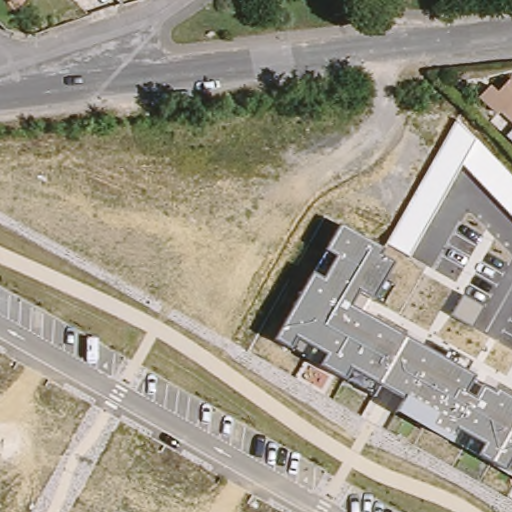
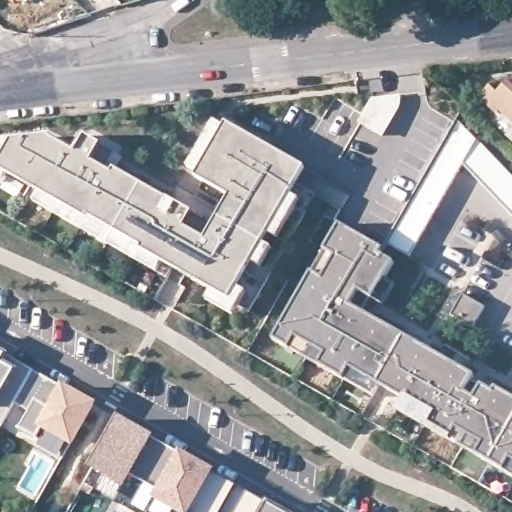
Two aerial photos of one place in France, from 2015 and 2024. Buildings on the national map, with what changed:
unchanged [(16,0),(10,6),(5,0),(16,0)]
unchanged [(504,120),(488,104),(499,93),(506,100),(512,95),(512,119),(508,115),(504,120)]
new [(375,100),(403,97),(403,107),(384,139),(360,125),(375,100)]
unchanged [(512,217),(462,166),(411,256),(387,242),(456,120),(512,177),(512,217)]
new [(49,134),(77,148),(85,135),(123,157),(115,170),(214,223),(230,196),(196,178),(198,173),(188,168),(214,121),(224,127),(227,124),(304,167),(290,195),(300,200),(277,238),(267,233),(262,244),(271,249),(260,268),(251,263),(238,288),(246,293),(234,316),(207,301),(212,292),(162,263),(157,273),(34,201),(40,192),(8,174),(3,182),(0,180),(0,139),(49,134)]
unchanged [(381,256),(394,263),(386,279),(394,285),(384,304),(372,297),(359,292),(351,306),(443,358),(449,348),(473,361),(468,371),(476,376),(466,393),(477,398),(483,387),(497,394),(500,391),(512,398),(512,477),(476,457),(483,444),(459,431),(452,443),(396,411),(403,398),(379,385),(374,396),(275,340),(340,224),(383,249),(381,256)]
new [(463,294),(485,306),(473,328),(451,315),(463,294)]
new [(20,362),(34,370),(15,403),(2,426),(0,425),(0,351),(7,354),(20,362)]
unchanged [(48,378),(63,387),(94,404),(72,442),(42,425),(51,409),(36,400),(30,411),(15,403),(34,370),(48,378)]
new [(153,498),(157,488),(132,475),(125,488),(89,468),(119,416),(292,512),(178,512),(153,498)]

